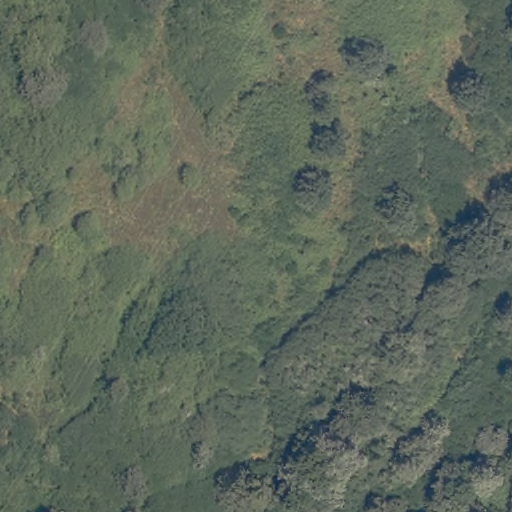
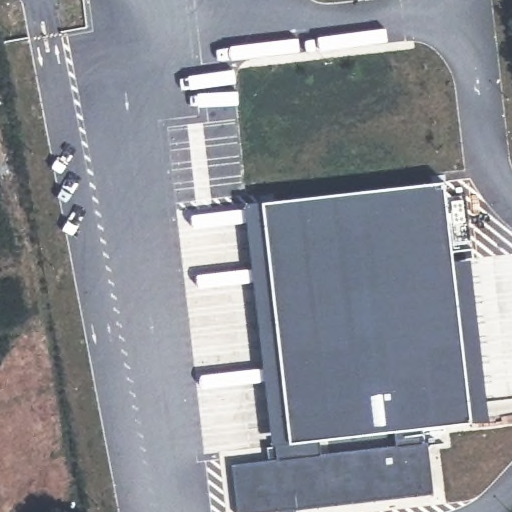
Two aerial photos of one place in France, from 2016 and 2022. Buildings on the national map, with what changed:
new [(470,421),(422,427),(433,493),(294,508),(295,512),(281,512),(280,509),(258,512),(236,512),(229,462),(274,457),(244,204),(261,201),(444,181),(452,260),(470,258),(488,420),(470,421)]

